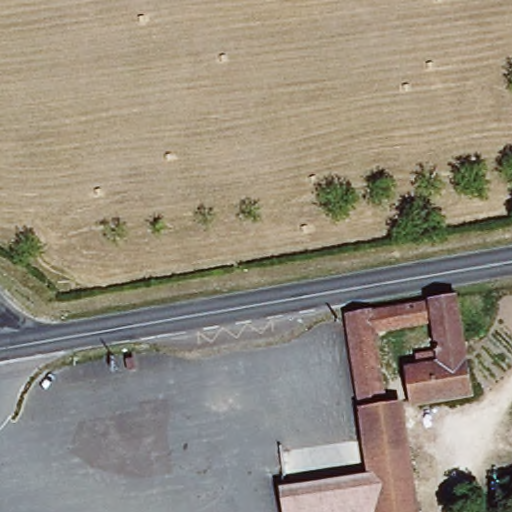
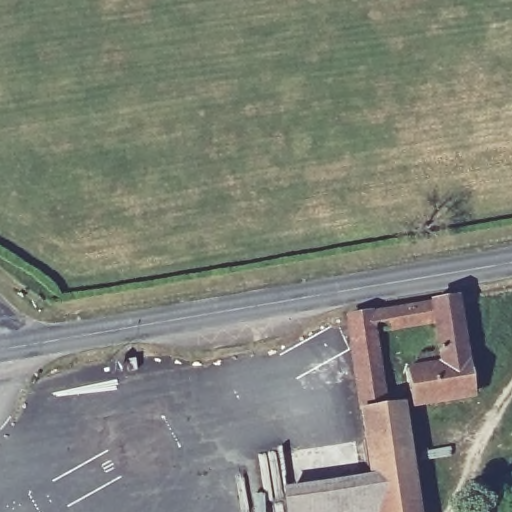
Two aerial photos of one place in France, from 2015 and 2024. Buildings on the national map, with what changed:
unchanged [(347,330),(345,318),(451,299),(468,398),(409,408),(403,374),(435,369),(428,332),(372,340),(385,411),(395,409),(413,512),(374,512),(368,481),(358,414),(347,330)]
unchanged [(300,492),(368,481),(374,512),(303,512),(300,492)]
unchanged [(280,494),(300,492),(303,512),(283,512),(280,494)]

